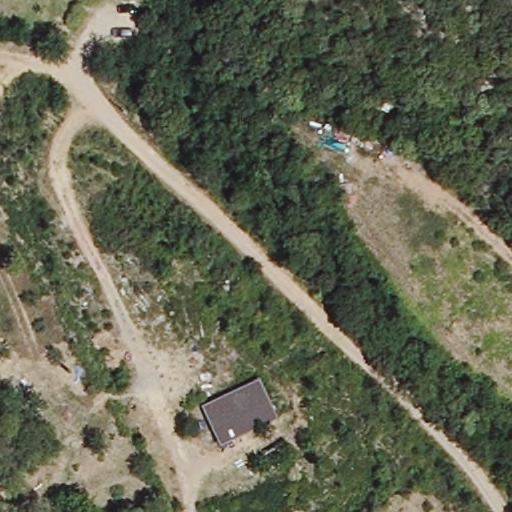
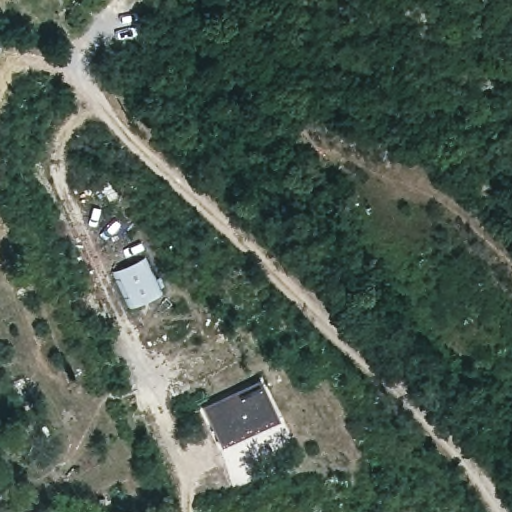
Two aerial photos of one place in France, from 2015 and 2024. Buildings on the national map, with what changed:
new [(162,295),(130,308),(113,271),(145,256),(162,295)]
unchanged [(202,408),(262,381),(281,420),(220,447),(202,408)]

